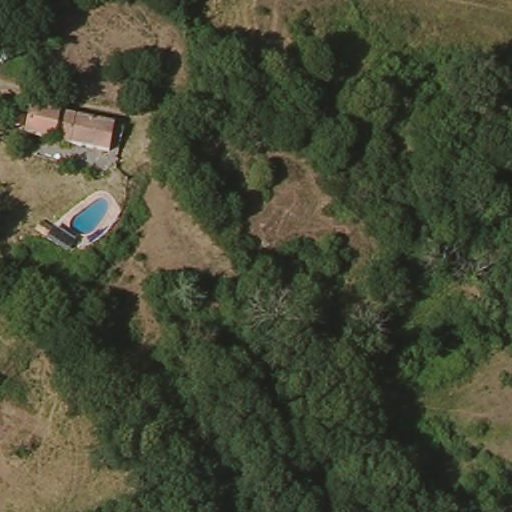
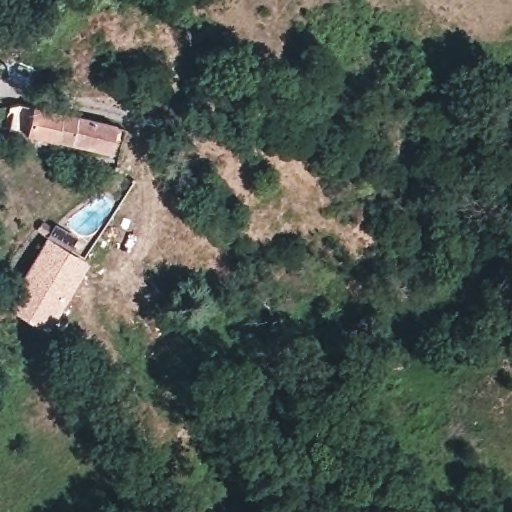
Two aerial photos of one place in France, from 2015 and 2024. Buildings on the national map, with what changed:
unchanged [(113,150),(29,132),(36,105),(120,124),(113,150)]
new [(45,237),(89,263),(47,332),(4,307),(45,237)]

